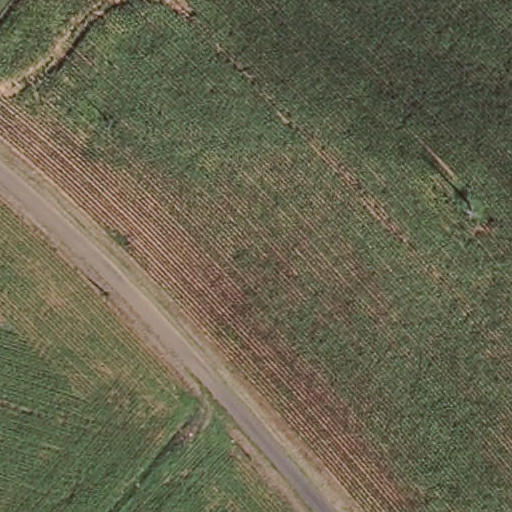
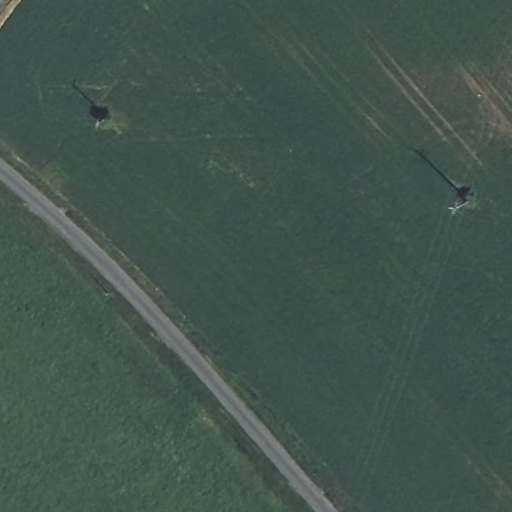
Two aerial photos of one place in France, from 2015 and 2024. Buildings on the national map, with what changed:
[]

